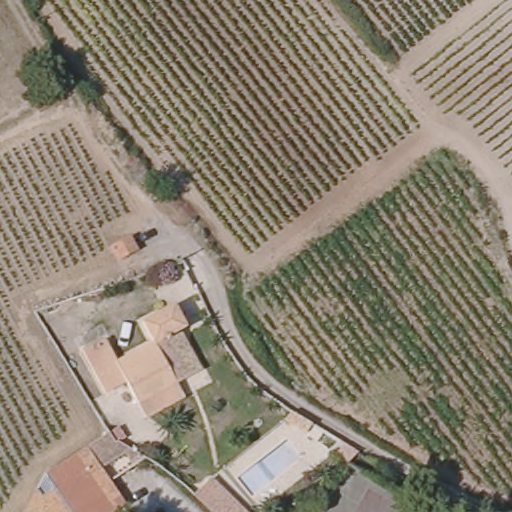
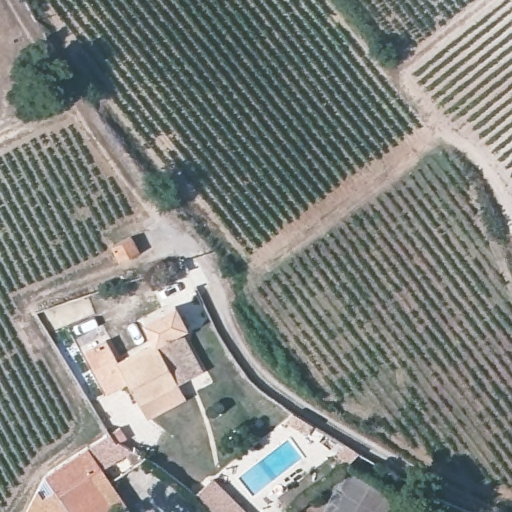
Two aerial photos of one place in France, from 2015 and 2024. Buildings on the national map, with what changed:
unchanged [(115,265),(109,252),(127,243),(134,255),(115,265)]
unchanged [(141,396),(130,374),(111,382),(92,340),(111,333),(121,353),(158,336),(150,319),(179,305),(190,327),(186,331),(203,368),(182,379),(141,396)]
unchanged [(201,422),(161,441),(141,396),(182,379),(201,422)]
unchanged [(105,466),(135,512),(31,512),(47,472),(118,425),(131,447),(105,466)]
unchanged [(216,477),(253,511),(253,512),(214,512),(195,494),(216,477)]

